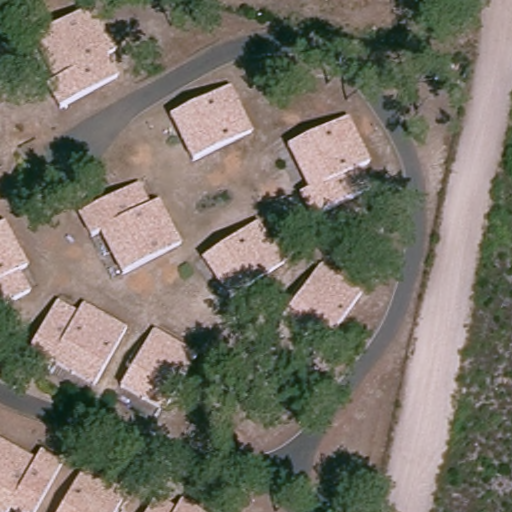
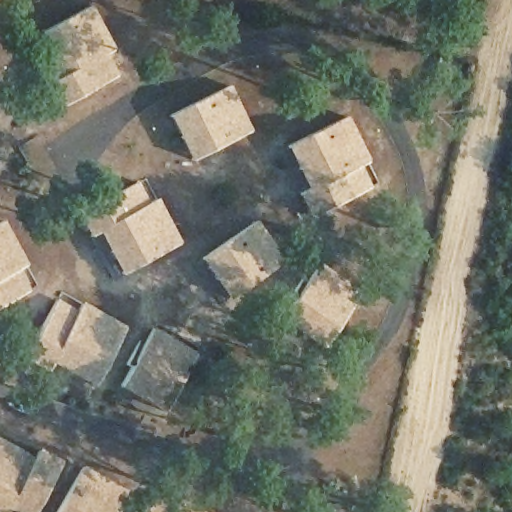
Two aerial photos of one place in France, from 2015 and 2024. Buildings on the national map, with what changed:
unchanged [(93,21),(115,62),(107,66),(117,87),(57,117),(49,98),(62,92),(39,47),(93,21)]
unchanged [(225,96),(247,141),(191,168),(168,124),(225,96)]
unchanged [(312,199),(288,154),(341,123),(364,165),(353,170),(365,191),(310,222),(301,206),(312,199)]
unchanged [(126,188),(136,206),(147,200),(169,244),(116,273),(94,232),(82,238),(72,218),(126,188)]
unchanged [(232,300),(200,261),(251,221),(282,259),(232,300)]
unchanged [(17,267),(9,272),(20,295),(0,306),(0,234),(17,267)]
unchanged [(360,293),(325,345),(283,316),(321,264),(360,293)]
unchanged [(59,310),(82,322),(85,316),(127,337),(97,397),(56,378),(54,382),(30,370),(59,310)]
unchanged [(145,340),(187,363),(159,417),(115,395),(145,340)]
unchanged [(31,512),(14,512),(8,509),(6,512),(0,512),(0,450),(27,463),(31,457),(53,467),(31,512)]
unchanged [(51,512),(74,472),(117,496),(108,512),(51,512)]
unchanged [(172,507),(177,499),(199,512),(140,512),(150,494),(172,507)]

